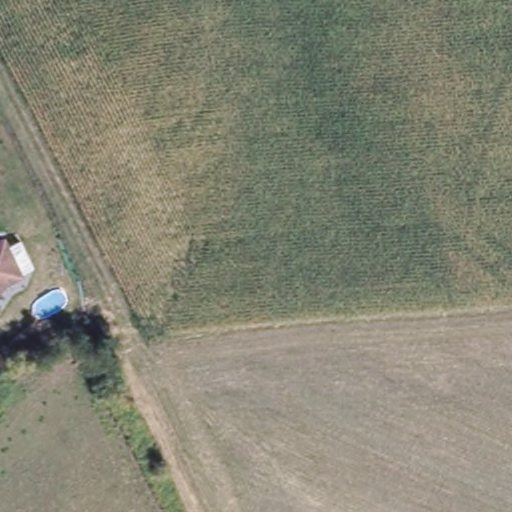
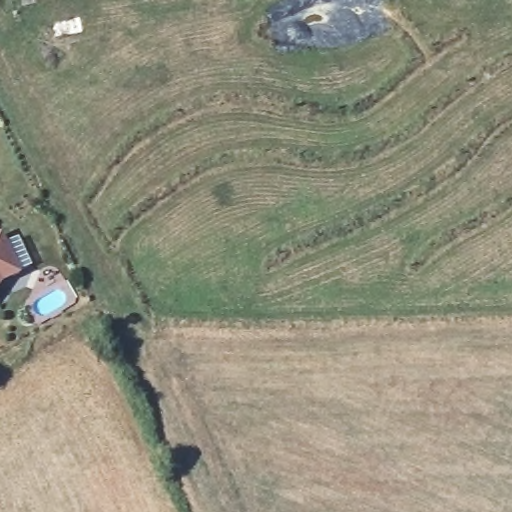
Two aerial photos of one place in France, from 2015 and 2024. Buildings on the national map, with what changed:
unchanged [(0,287),(0,247),(16,280),(0,287)]

